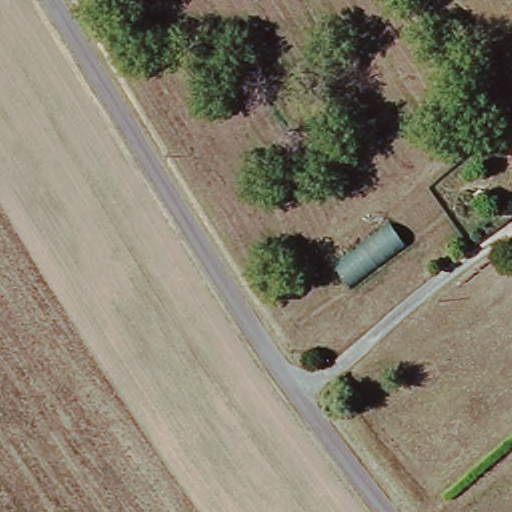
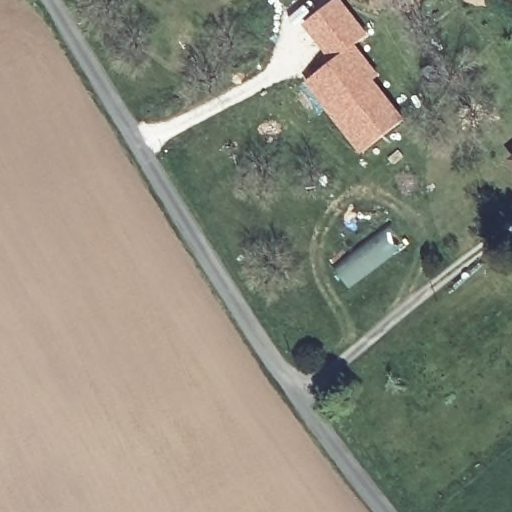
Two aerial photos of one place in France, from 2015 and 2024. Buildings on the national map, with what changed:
new [(343,0),(369,34),(356,43),(329,61),(302,23),(332,0),(343,0)]
new [(329,61),(356,43),(381,75),(376,79),(405,118),(360,154),(325,109),(319,113),(298,86),(329,61)]
unchanged [(512,164),(512,173),(508,167),(512,164)]
unchanged [(393,221),(409,243),(351,286),(336,265),(393,221)]

